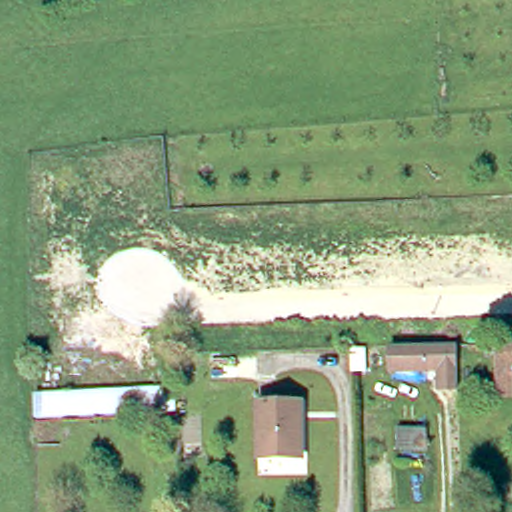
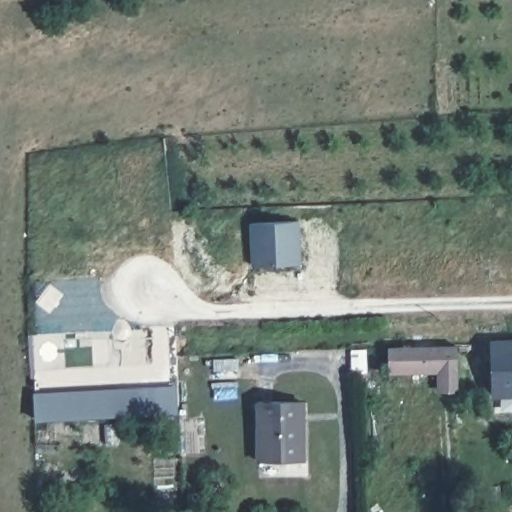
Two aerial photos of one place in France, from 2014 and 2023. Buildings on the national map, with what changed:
new [(300,264),(252,267),(250,224),(298,220),(300,264)]
demolished [(497,339),(512,339),(512,389),(498,389),(497,339)]
unchanged [(435,365),(387,366),(387,343),(455,340),(457,383),(437,383),(435,365)]
unchanged [(178,413),(158,414),(138,415),(118,416),(98,417),(83,417),(68,418),(58,419),(36,420),(35,396),(57,395),(77,394),(97,393),(117,392),(137,391),(157,390),(177,389),(178,413)]
unchanged [(255,455),(255,395),(299,394),(300,406),(300,416),(300,455),(255,455)]

